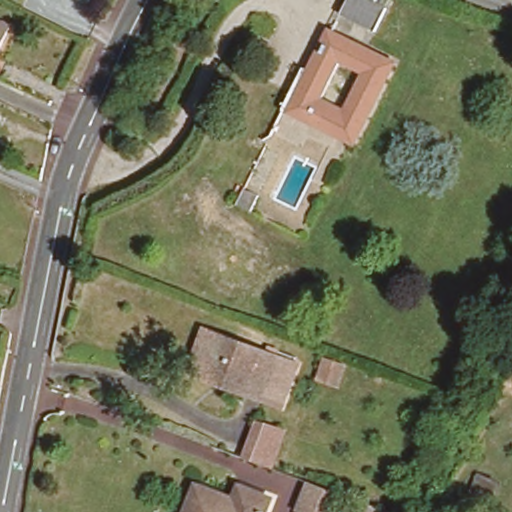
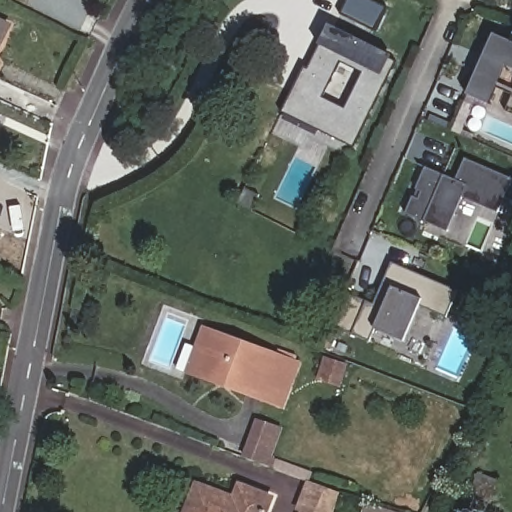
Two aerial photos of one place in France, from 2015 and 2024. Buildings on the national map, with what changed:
unchanged [(344,0),(358,0),(387,0),(383,11),(373,35),(336,18),(344,0)]
unchanged [(5,33),(0,42),(0,31),(5,33)]
unchanged [(394,65),(353,150),(286,116),(327,32),(394,65)]
new [(512,42),(512,115),(468,96),(494,35),(512,42)]
new [(465,199),(449,232),(406,214),(426,169),(457,181),(466,160),(512,179),(512,180),(498,214),(465,199)]
unchanged [(231,197),(236,187),(253,196),(246,211),(229,203),(231,197)]
new [(446,316),(420,305),(405,342),(374,330),(369,341),(338,328),(352,295),(374,303),(391,262),(458,291),(446,316)]
unchanged [(297,370),(283,407),(266,401),(261,398),(260,401),(238,393),(200,379),(189,375),(196,356),(203,336),(255,355),(274,362),(281,364),(297,370)]
unchanged [(342,367),(336,387),(317,381),(323,361),(342,367)]
unchanged [(256,421),(286,432),(271,470),(268,468),(240,458),(240,457),(254,420),(256,421)]
unchanged [(288,507),(282,506),(291,477),(324,488),(317,512),(287,512),(288,507)]
unchanged [(199,491),(202,492),(233,505),(239,492),(250,497),(275,507),(273,512),(190,512),(199,491)]

